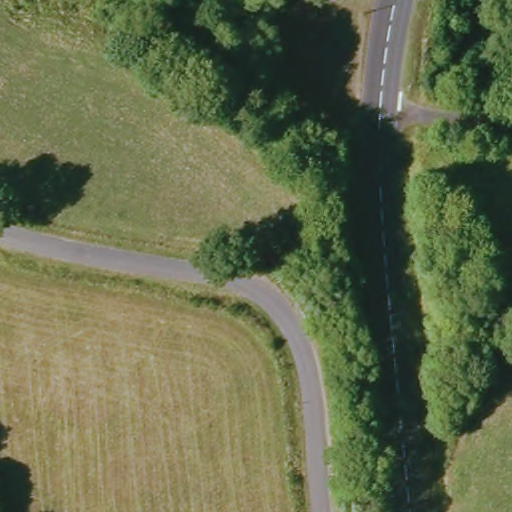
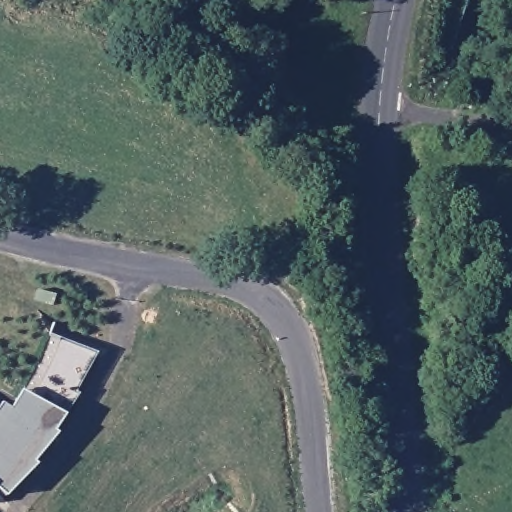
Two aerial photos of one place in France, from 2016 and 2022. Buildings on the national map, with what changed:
new [(38,288),(55,293),(53,304),(35,299),(38,288)]
new [(11,409),(49,338),(94,356),(73,394),(75,397),(50,434),(53,436),(29,464),(32,466),(4,495),(0,491),(0,406),(1,404),(11,409)]

